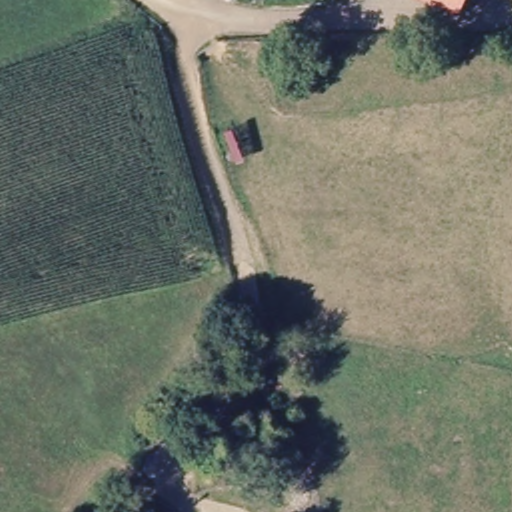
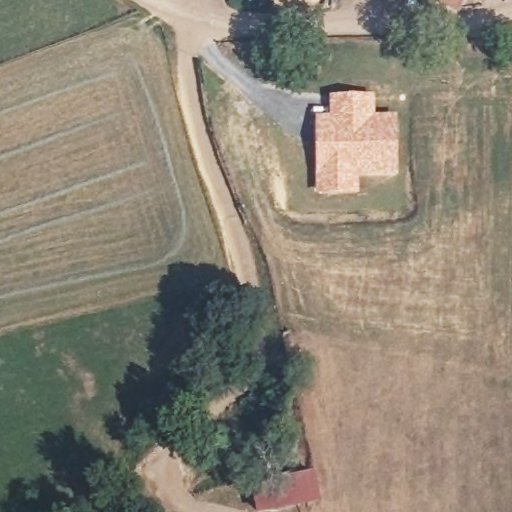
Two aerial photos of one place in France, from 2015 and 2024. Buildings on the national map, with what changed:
unchanged [(465,0),(462,8),(446,0),(465,0)]
new [(315,118),(329,117),(329,95),(375,95),(375,114),(396,114),(398,174),(359,175),(359,192),(314,191),(315,118)]

